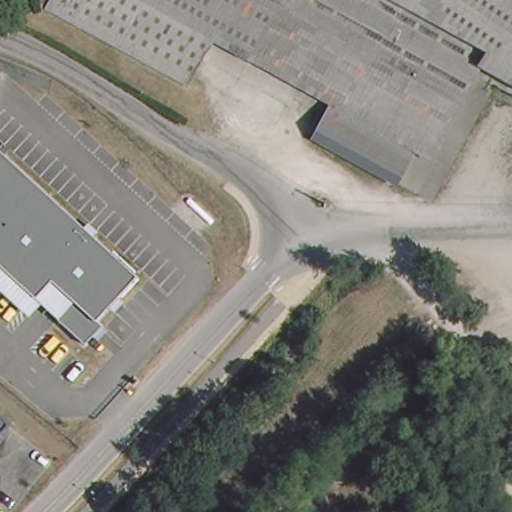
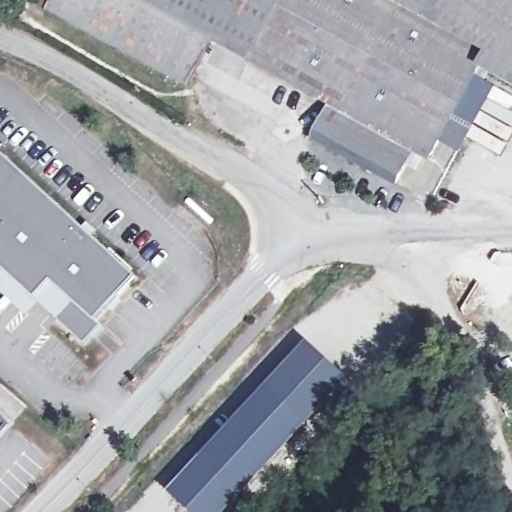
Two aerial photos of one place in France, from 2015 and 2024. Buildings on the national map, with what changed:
unchanged [(432,159),(417,150),(399,184),(317,139),(334,106),(216,39),(191,84),(50,8),(55,0),(512,0),(512,85),(482,69),(432,159)]
unchanged [(97,320),(104,328),(85,348),(57,323),(39,307),(28,320),(0,295),(0,153),(136,278),(97,320)]
new [(228,512),(188,512),(167,493),(307,342),(349,381),(228,512)]
unchanged [(8,425),(0,432),(0,418),(8,425)]

